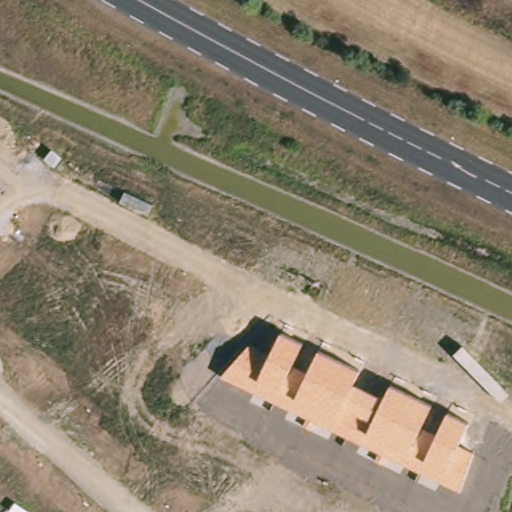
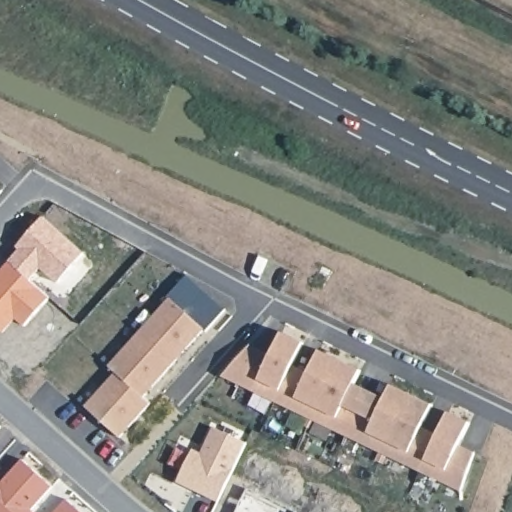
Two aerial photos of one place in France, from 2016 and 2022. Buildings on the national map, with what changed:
new [(186,275),(225,310),(206,332),(204,330),(169,299),(166,297),(186,275)]
new [(116,372),(109,365),(101,359),(105,355),(112,362),(139,332),(131,326),(135,322),(142,329),(169,299),(204,330),(174,363),(144,397),(116,372)]
unchanged [(249,342),(270,352),(280,332),(304,343),(295,364),(309,370),(318,350),(361,370),(356,384),(384,398),(390,385),(432,405),(424,427),(438,433),(447,413),(469,422),(460,445),(475,451),(461,490),(223,377),(249,342)]
new [(144,397),(150,403),(120,437),(85,406),(78,400),(81,396),(88,403),(116,372),(144,397)]
new [(193,449),(201,453),(214,427),(246,443),(218,502),(177,482),(193,449)]
new [(0,512),(0,484),(20,461),(50,488),(30,511),(29,512),(0,512)]
new [(76,512),(55,512),(65,501),(76,512)]
new [(31,512),(29,512),(30,511),(31,512)]

